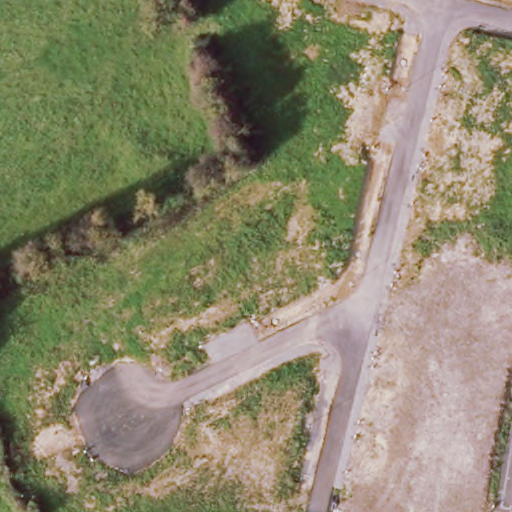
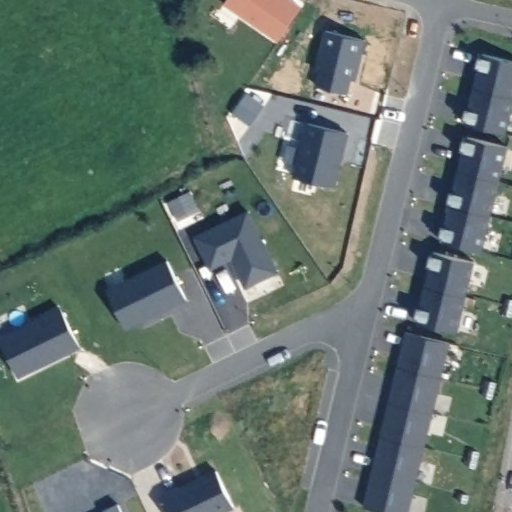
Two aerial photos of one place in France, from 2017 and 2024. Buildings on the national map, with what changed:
new [(292,0),(302,7),(277,42),(225,4),(227,0),(292,0)]
new [(353,79),(350,92),(315,84),(319,69),(315,68),(325,30),(367,39),(357,80),(353,79)]
new [(512,87),(502,134),(463,123),(465,120),(461,119),(466,97),(470,99),(475,80),(470,80),(476,57),(478,57),(478,59),(480,54),(512,61),(512,87)]
new [(337,187),(293,176),(307,121),(350,133),(337,187)]
new [(505,146),(480,250),(440,240),(441,236),(438,235),(442,214),(445,215),(449,203),(445,202),(450,180),(453,181),(458,161),(455,161),(460,139),(463,140),(465,136),(505,146)]
new [(212,267),(195,236),(250,210),(279,272),(245,287),(233,258),(212,267)]
new [(472,260),(455,330),(415,321),(416,317),(413,316),(418,294),(422,295),(427,276),(423,275),(428,255),(430,255),(432,251),(472,260)]
new [(127,330),(107,290),(168,260),(188,300),(127,330)]
new [(20,379),(0,339),(0,337),(62,307),(82,348),(20,379)]
new [(447,341),(406,512),(389,512),(363,505),(367,488),(368,489),(373,472),(371,472),(375,454),(377,455),(386,418),(384,418),(392,385),(393,385),(403,348),(400,347),(405,331),(447,341)]
new [(163,495),(217,469),(238,508),(231,512),(171,512),(163,495)]
new [(105,511),(118,505),(122,512),(105,512),(105,511)]

